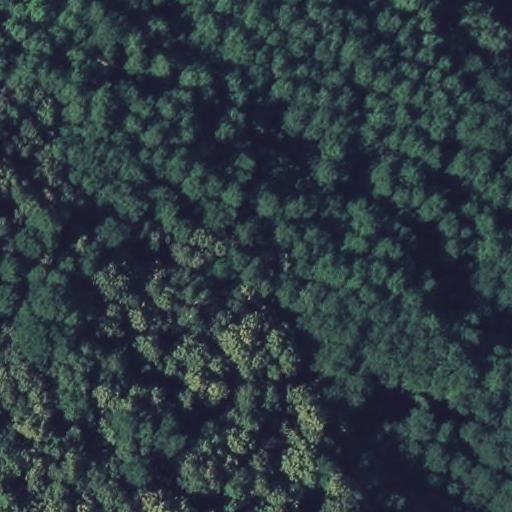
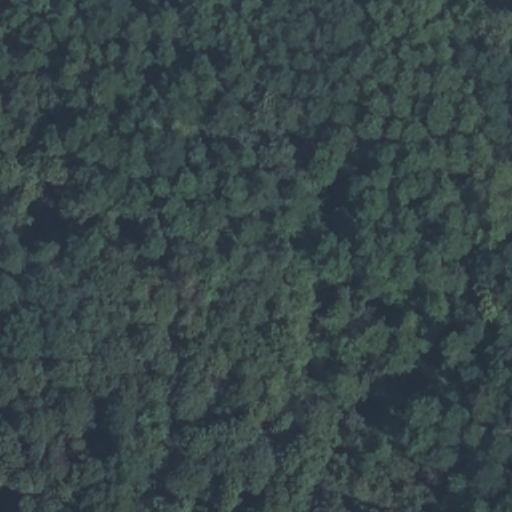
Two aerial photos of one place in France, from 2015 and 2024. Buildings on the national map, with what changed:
[]

